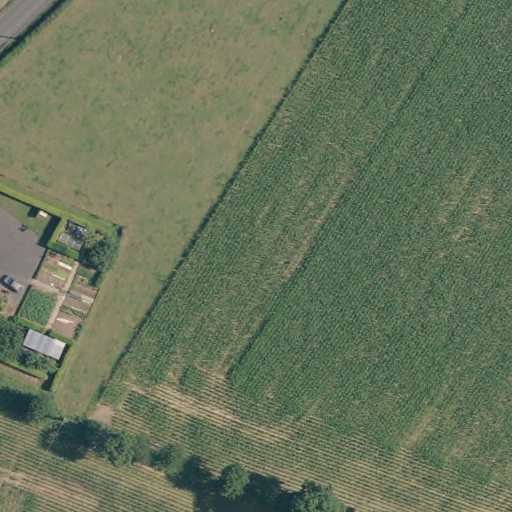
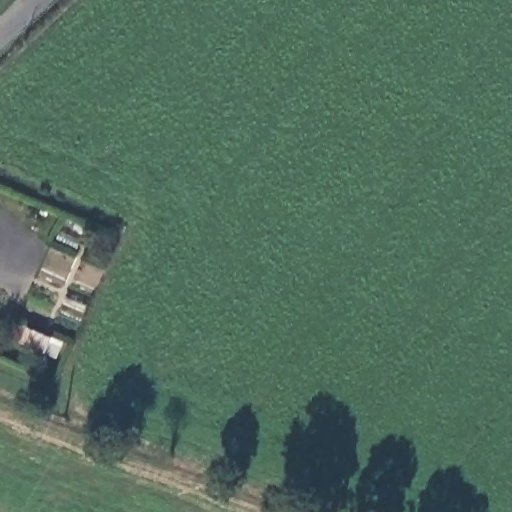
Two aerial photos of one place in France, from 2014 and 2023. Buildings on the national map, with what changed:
unchanged [(36,327),(74,341),(66,362),(28,347),(36,327)]

